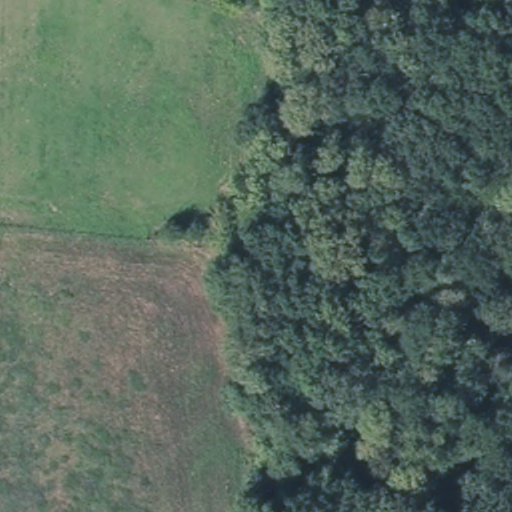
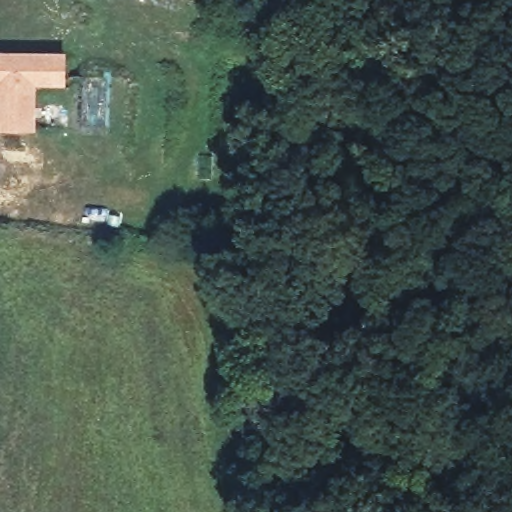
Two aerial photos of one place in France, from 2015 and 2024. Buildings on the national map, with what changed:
new [(66,86),(36,86),(36,131),(0,132),(0,50),(68,51),(66,86)]

